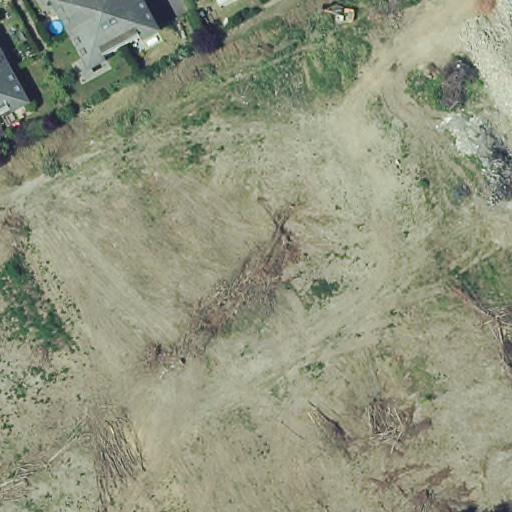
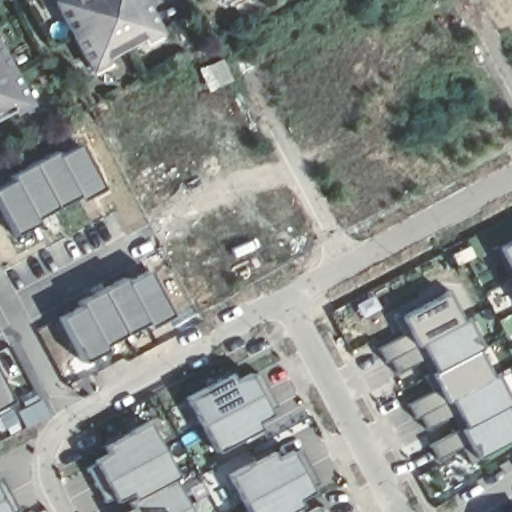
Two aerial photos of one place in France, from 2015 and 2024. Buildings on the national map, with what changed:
unchanged [(67,1),(67,0),(135,0),(153,34),(85,72),(50,10),(67,1)]
unchanged [(0,116),(0,72),(18,106),(0,116)]
new [(53,150),(56,154),(77,143),(101,187),(78,200),(76,198),(36,222),(10,178),(8,175),(53,150)]
new [(36,222),(14,235),(0,210),(0,184),(10,178),(36,222)]
new [(505,281),(509,279),(492,249),(498,248),(512,240),(512,297),(505,281)]
new [(83,298),(122,277),(144,269),(168,314),(147,326),(145,322),(80,361),(56,317),(83,298)]
new [(475,457),(475,462),(467,465),(460,448),(436,459),(430,446),(459,431),(450,417),(426,429),(420,416),(415,419),(408,405),(430,393),(422,377),(430,374),(420,360),(397,373),(390,359),(385,362),(378,348),(401,336),(392,319),(399,317),(444,295),(448,291),(464,320),(468,316),(483,345),(480,347),(493,376),(497,373),(512,400),(512,402),(509,403),(512,409),(512,438),(475,457)]
new [(0,370),(16,401),(0,409),(0,370)]
new [(274,414),(260,422),(264,430),(222,453),(191,397),(236,374),(239,381),(253,373),(274,414)]
new [(12,411),(38,396),(50,417),(22,429),(18,421),(2,430),(0,427),(0,414),(10,407),(12,411)]
new [(133,500),(104,446),(147,422),(176,477),(172,479),(190,512),(133,512),(128,503),(133,500)]
new [(272,452),(275,458),(290,452),(292,454),(300,450),(317,484),(310,488),(312,491),(312,492),(297,499),(300,506),(296,509),(298,512),(248,512),(228,475),(272,452)]
new [(317,511),(325,507),(328,512),(302,512),(314,506),(317,511)]

